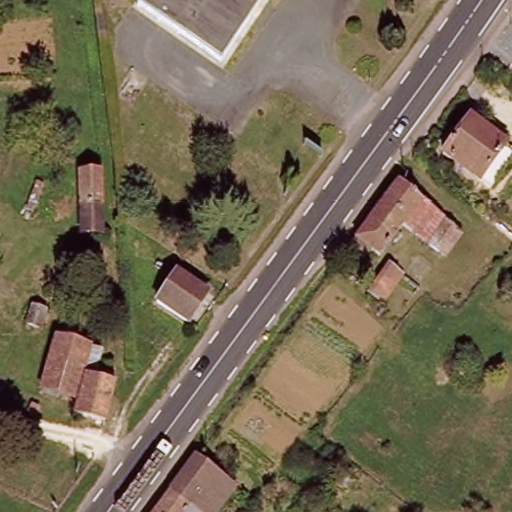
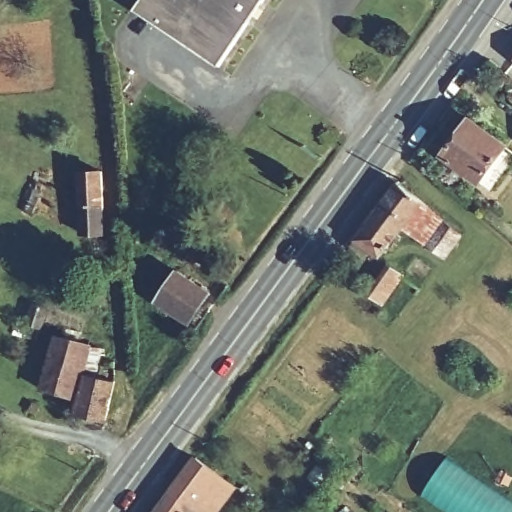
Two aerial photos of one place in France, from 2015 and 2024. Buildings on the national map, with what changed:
unchanged [(213,65),(133,6),(137,0),(261,0),(213,65)]
unchanged [(492,192),(446,158),(472,123),(512,152),(512,165),(492,192)]
unchanged [(84,234),(79,180),(102,177),(106,232),(84,234)]
unchanged [(394,180),(462,232),(442,256),(402,227),(376,256),(349,240),(394,180)]
unchanged [(378,304),(364,294),(383,267),(397,276),(378,304)]
unchanged [(208,297),(189,323),(159,303),(177,276),(208,297)]
unchanged [(88,372),(78,400),(41,392),(55,337),(91,349),(88,372)]
unchanged [(100,375),(102,363),(117,362),(118,377),(108,422),(75,411),(78,400),(88,372),(100,375)]
new [(447,457),(512,502),(512,512),(446,512),(422,495),(447,457)]
unchanged [(236,488),(219,512),(196,512),(171,494),(196,460),(204,466),(236,488)]
unchanged [(158,512),(171,494),(196,512),(158,512)]

